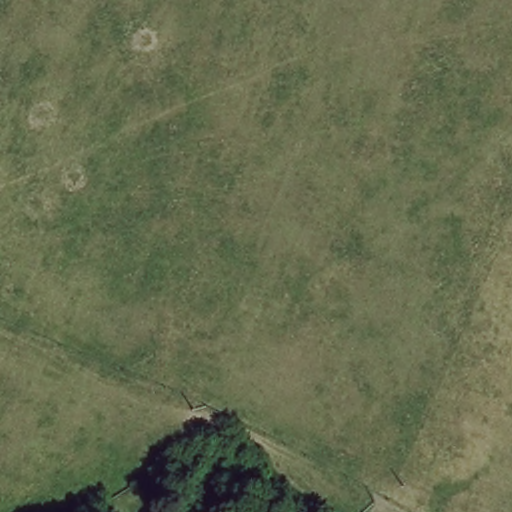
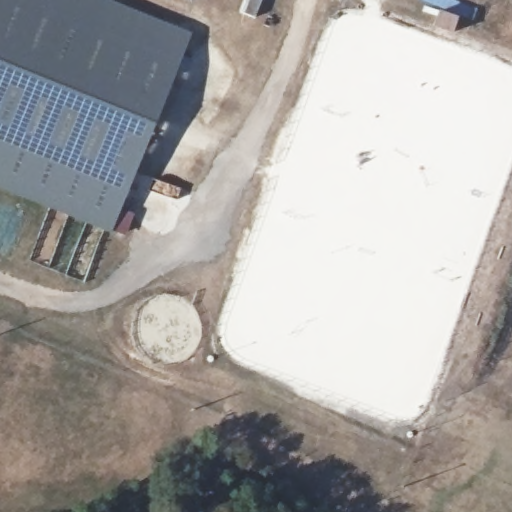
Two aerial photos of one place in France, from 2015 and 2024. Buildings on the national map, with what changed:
new [(90,0),(184,39),(106,226),(0,183),(0,0),(90,0)]
new [(261,0),(255,16),(241,11),(245,0),(261,0)]

